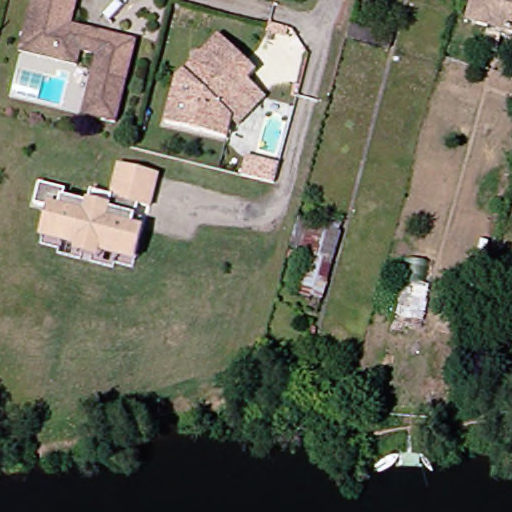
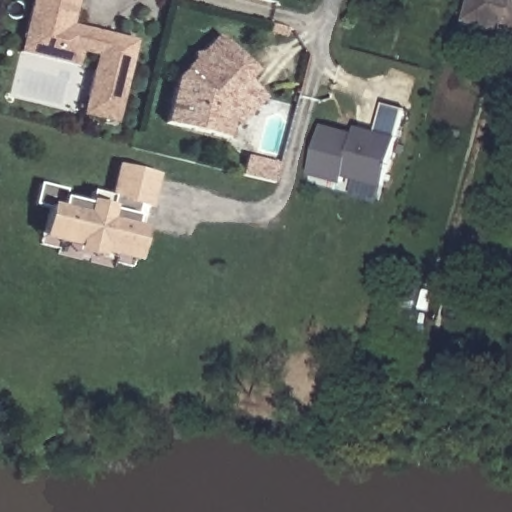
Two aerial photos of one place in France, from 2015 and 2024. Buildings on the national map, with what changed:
unchanged [(104,55),(87,51),(87,56),(84,65),(27,50),(30,40),(41,0),(86,0),(79,25),(144,42),(122,124),(111,120),(88,115),(94,95),(104,55)]
unchanged [(476,0),(512,0),(512,33),(470,21),(476,0)]
unchanged [(242,126),(236,120),(231,140),(170,124),(181,80),(199,61),(197,54),(205,55),(222,36),(260,72),(251,80),(269,98),(242,126)]
new [(386,190),(344,177),(343,185),(310,176),(322,126),(355,133),(357,127),(377,132),(383,105),(403,110),(386,190)]
new [(245,159),(278,166),(273,184),(241,175),(245,159)]
unchanged [(102,254),(104,247),(85,241),(83,249),(47,239),(48,232),(55,209),(40,205),(46,185),(71,191),(69,200),(94,206),(97,193),(117,199),(126,168),(164,178),(155,210),(144,207),(138,230),(147,233),(141,257),(139,263),(102,254)]

